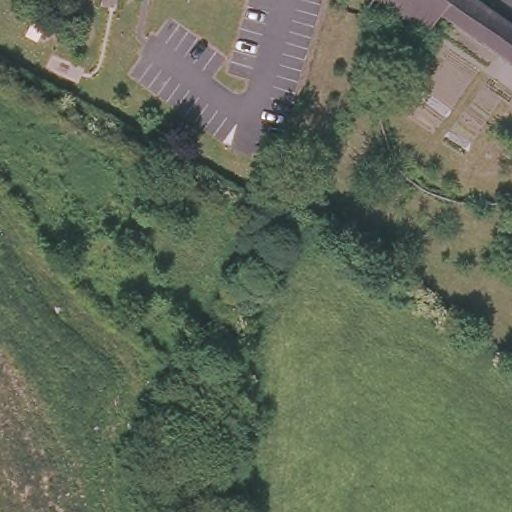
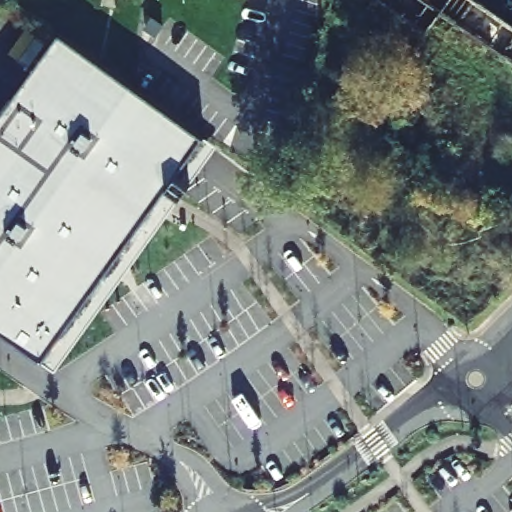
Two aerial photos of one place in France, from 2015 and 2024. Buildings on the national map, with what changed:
unchanged [(442,12),(427,33),(382,0),(480,0),(512,22),(512,60),(442,12)]
new [(47,364),(0,332),(0,108),(57,28),(210,144),(47,364)]

